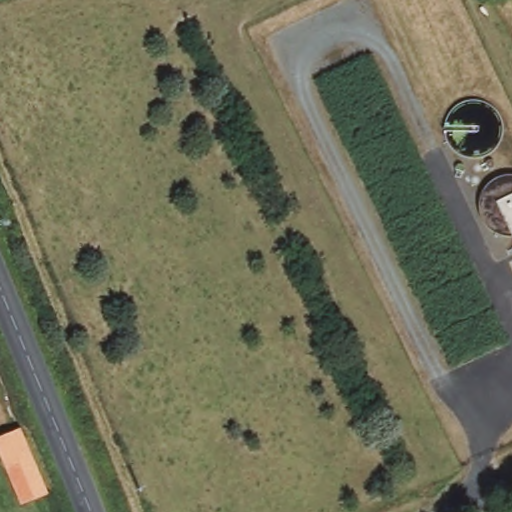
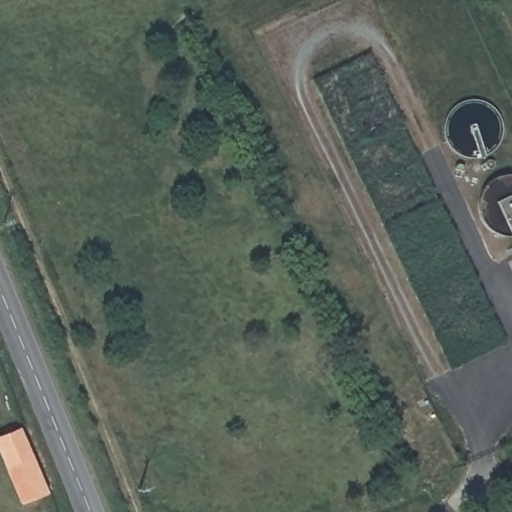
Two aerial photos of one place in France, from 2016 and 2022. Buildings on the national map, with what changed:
unchanged [(20,428),(45,489),(18,502),(0,453),(0,437),(20,428)]

